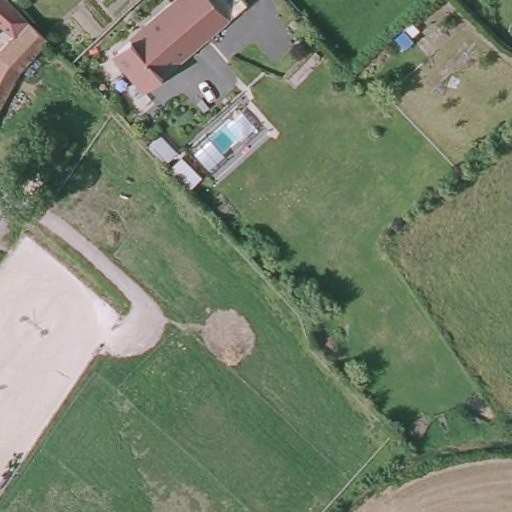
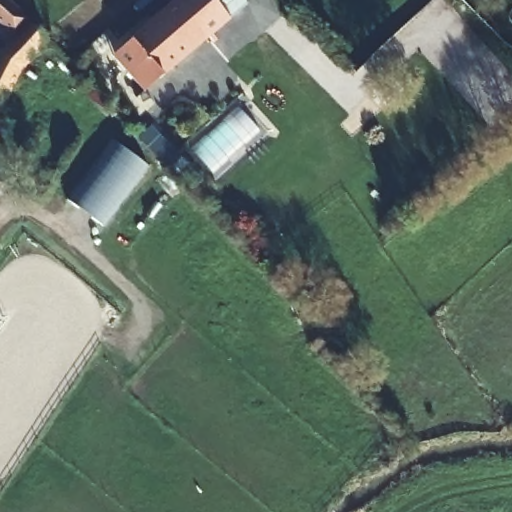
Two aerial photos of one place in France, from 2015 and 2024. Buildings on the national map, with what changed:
unchanged [(0,105),(0,43),(7,36),(0,30),(0,0),(10,0),(27,22),(35,15),(48,31),(51,38),(23,60),(0,105)]
unchanged [(150,20),(148,19),(171,0),(252,0),(253,1),(249,4),(146,86),(120,54),(115,49),(120,44),(150,20)]
new [(125,192),(101,224),(70,201),(113,141),(138,160),(118,187),(125,192)]
unchanged [(52,194),(25,181),(35,158),(65,172),(52,194)]

